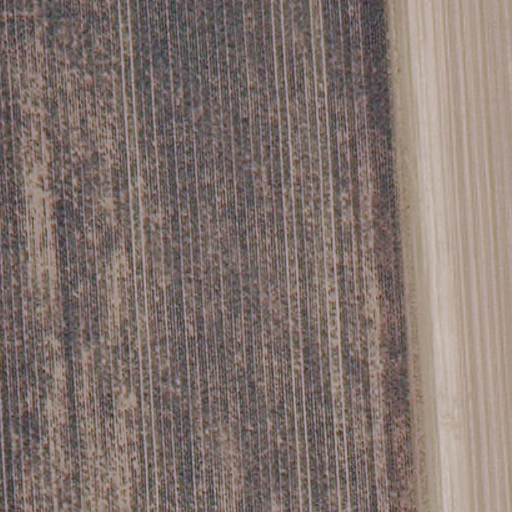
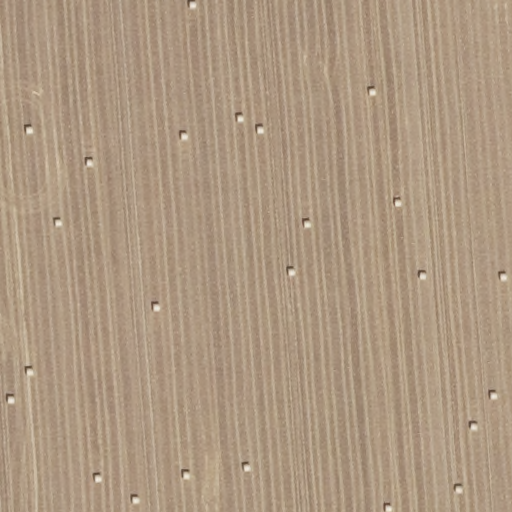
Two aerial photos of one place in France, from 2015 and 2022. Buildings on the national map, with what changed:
[]

